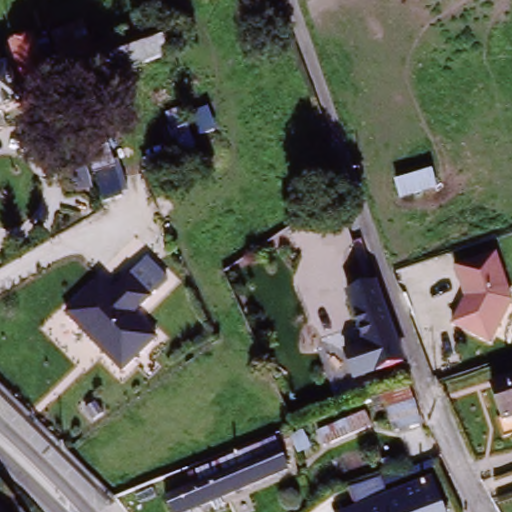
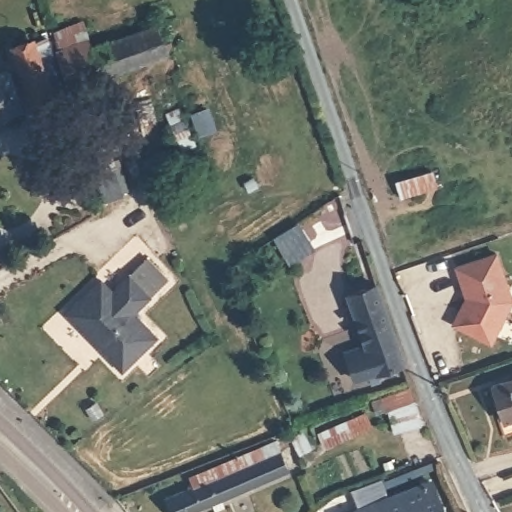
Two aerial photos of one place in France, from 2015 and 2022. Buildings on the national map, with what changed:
unchanged [(172,58),(76,91),(63,42),(94,35),(100,45),(117,41),(113,29),(139,21),(152,18),(160,16),(172,58)]
unchanged [(15,42),(35,37),(38,42),(53,40),(62,72),(50,77),(55,99),(35,105),(15,42)]
unchanged [(15,72),(27,107),(14,111),(15,132),(1,137),(0,136),(0,76),(15,72)]
unchanged [(183,105),(194,144),(180,147),(169,110),(183,105)]
unchanged [(75,180),(54,185),(49,170),(71,164),(75,180)]
unchanged [(398,179),(435,170),(439,186),(404,198),(398,179)]
unchanged [(512,296),(512,299),(496,348),(452,336),(466,303),(455,270),(499,260),(512,296)]
unchanged [(155,345),(120,378),(62,320),(94,290),(105,301),(127,280),(150,303),(132,320),(155,345)]
unchanged [(348,295),(377,285),(404,362),(375,372),(348,295)]
unchanged [(512,373),(512,429),(505,431),(500,413),(507,410),(497,378),(512,373)]
unchanged [(386,402),(395,400),(412,393),(422,418),(404,425),(395,427),(386,402)]
unchanged [(365,413),(372,427),(327,445),(321,430),(365,413)]
unchanged [(292,473),(207,508),(199,512),(176,512),(170,496),(197,485),(282,450),(292,473)]
unchanged [(435,481),(440,497),(445,512),(345,512),(382,500),(435,481)]
unchanged [(7,512),(0,512),(0,504),(1,503),(7,512)]

